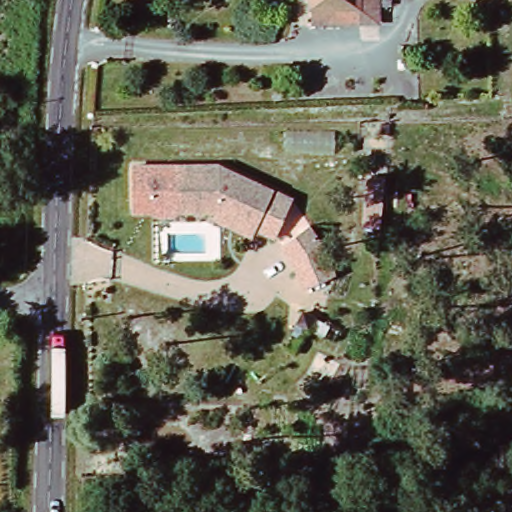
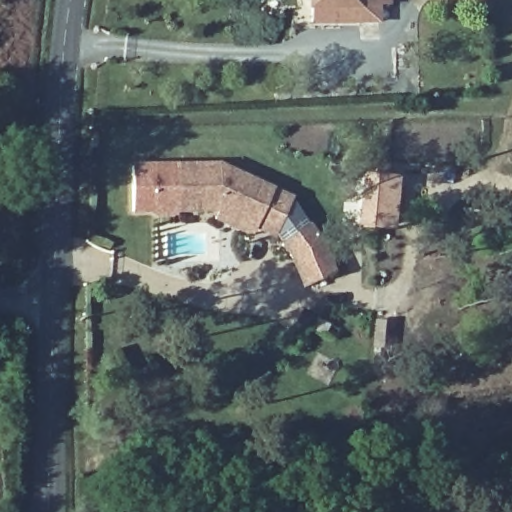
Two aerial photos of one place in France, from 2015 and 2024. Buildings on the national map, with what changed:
unchanged [(309,0),(379,0),(379,11),(310,16),(309,0)]
unchanged [(178,216),(132,217),(132,164),(180,164),(177,207),(178,216)]
unchanged [(215,218),(220,209),(177,207),(180,164),(223,166),(293,196),(275,232),(256,224),(252,233),(215,218)]
new [(355,170),(399,175),(395,231),(355,230),(355,170)]
unchanged [(309,226),(320,246),(333,277),(302,290),(288,258),(281,245),(309,226)]

